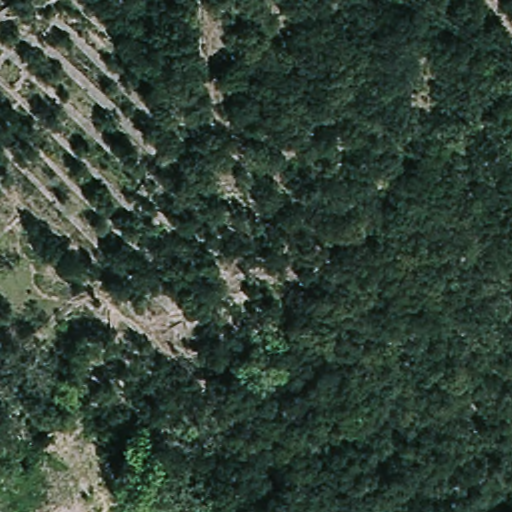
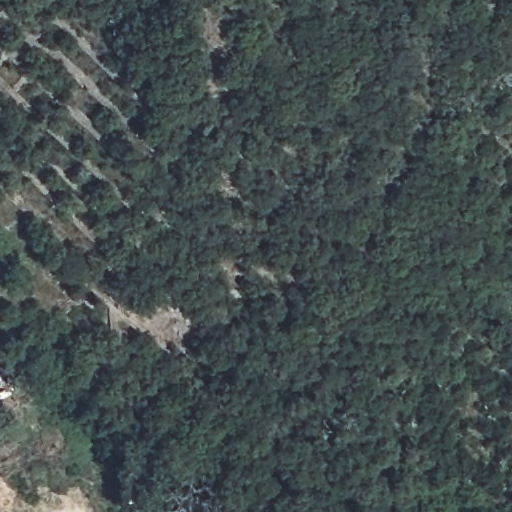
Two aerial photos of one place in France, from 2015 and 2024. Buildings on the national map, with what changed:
[]

